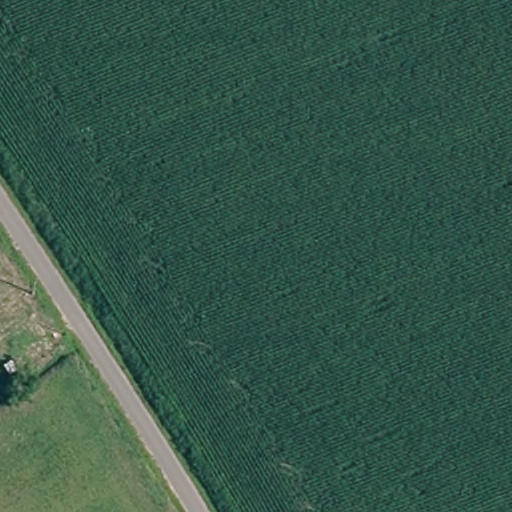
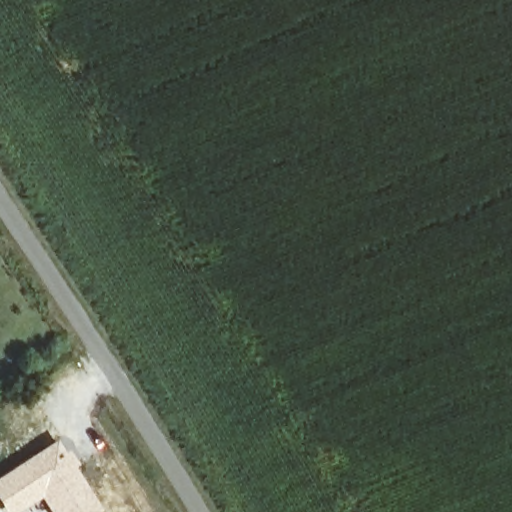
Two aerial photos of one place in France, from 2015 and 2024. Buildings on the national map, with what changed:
new [(100,510),(97,512),(47,512),(39,500),(23,512),(1,512),(0,511),(0,476),(57,440),(100,510)]

